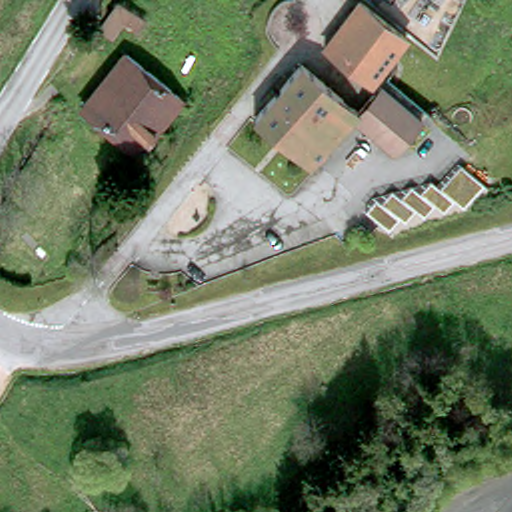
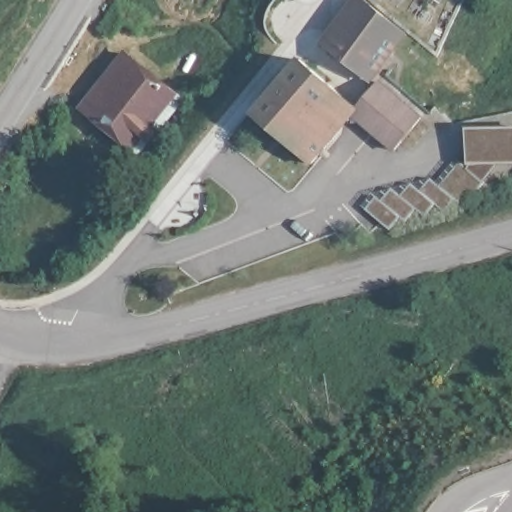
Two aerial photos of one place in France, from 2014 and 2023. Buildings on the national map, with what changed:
unchanged [(142,16),(135,25),(122,16),(111,30),(101,24),(117,0),(120,0),(131,8),(142,16)]
unchanged [(359,2),(407,37),(370,89),(322,54),(359,2)]
unchanged [(130,55),(142,64),(144,64),(170,85),(170,89),(187,100),(143,156),(84,115),(130,55)]
unchanged [(372,132),(355,119),(313,169),(256,122),(304,66),(361,111),(382,85),(388,78),(415,99),(432,112),(424,121),(397,154),(372,132)]
new [(468,164),(467,130),(512,129),(512,165),(500,165),(482,182),(468,169),(468,164)]
unchanged [(482,182),(462,205),(453,197),(442,211),(432,203),(423,216),(414,209),(403,221),(398,217),(389,229),(366,210),(375,197),(380,201),(390,189),(400,197),(411,184),(420,190),(430,179),(440,185),(460,161),(482,182)]

